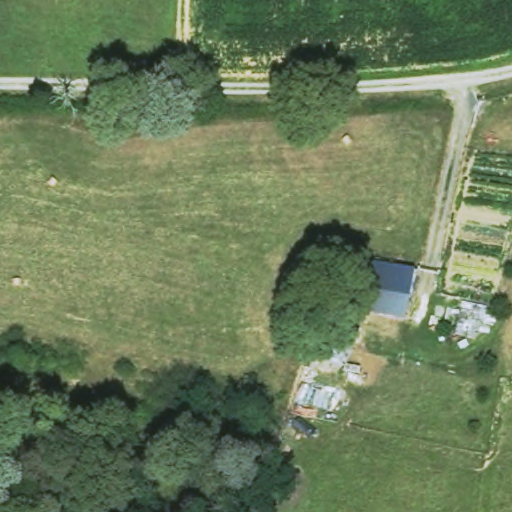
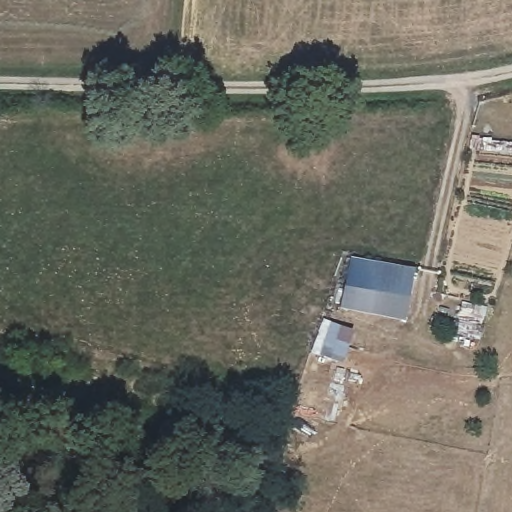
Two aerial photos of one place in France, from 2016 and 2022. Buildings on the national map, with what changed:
unchanged [(403,320),(355,309),(350,321),(360,326),(343,369),(308,357),(347,256),(416,269),(403,320)]

